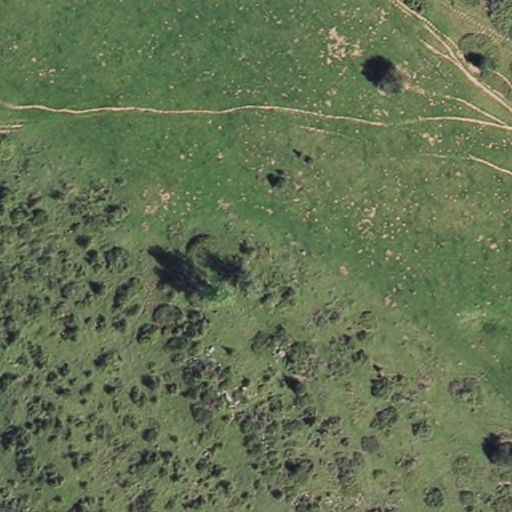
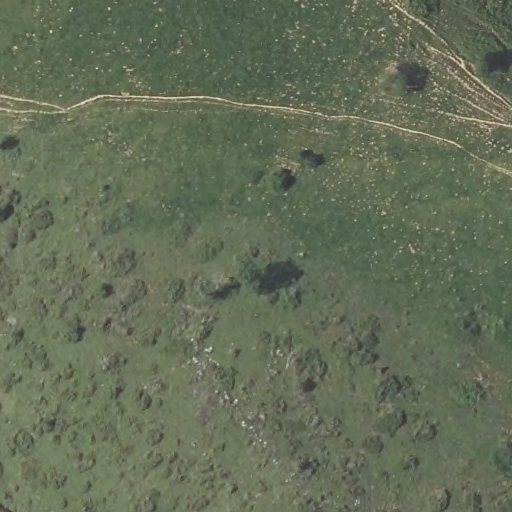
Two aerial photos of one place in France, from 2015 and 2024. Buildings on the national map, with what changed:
unchanged [(377,84),(384,67),(407,69),(398,89),(377,84)]

